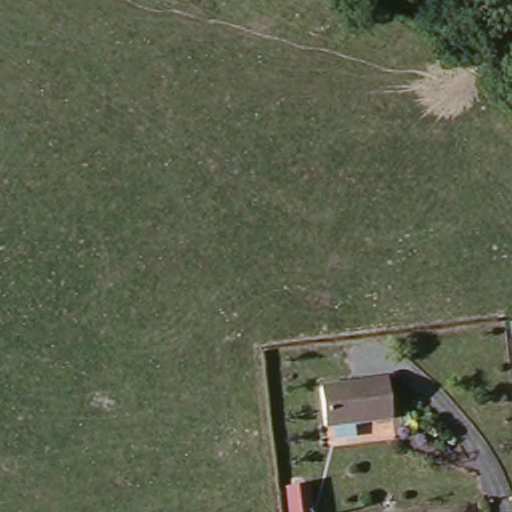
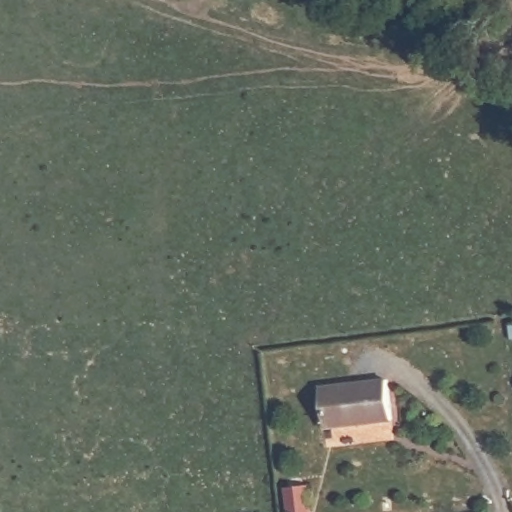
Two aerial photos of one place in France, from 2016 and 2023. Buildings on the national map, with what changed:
unchanged [(384,385),(389,426),(323,433),(319,394),(384,385)]
unchanged [(296,492),(297,512),(277,512),(275,492),(296,492)]

